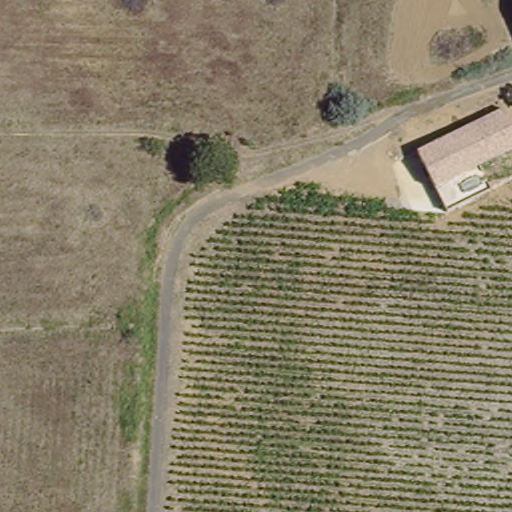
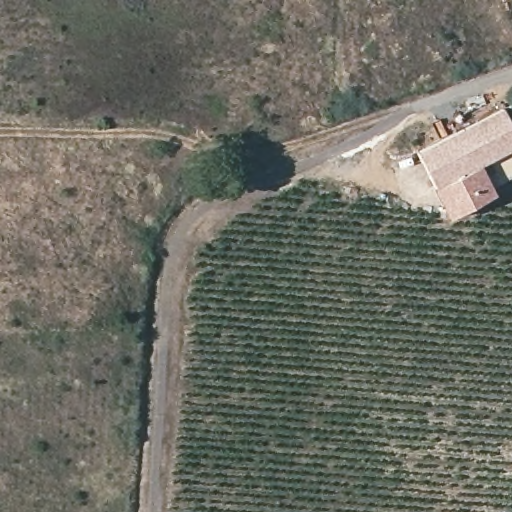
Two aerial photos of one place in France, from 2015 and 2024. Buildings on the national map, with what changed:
unchanged [(512,135),(512,148),(433,185),(413,150),(500,108),(512,135)]
new [(497,195),(449,217),(433,185),(481,162),(497,195)]

